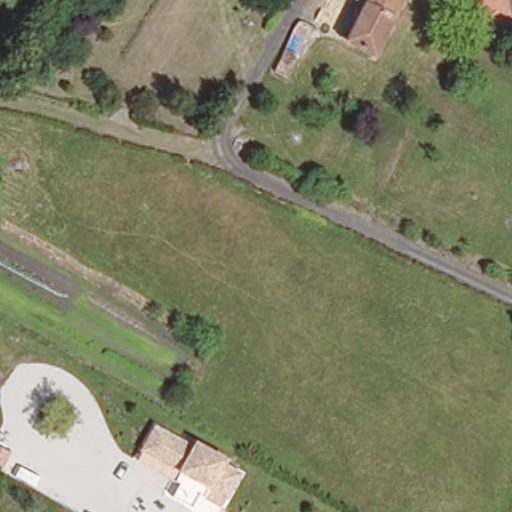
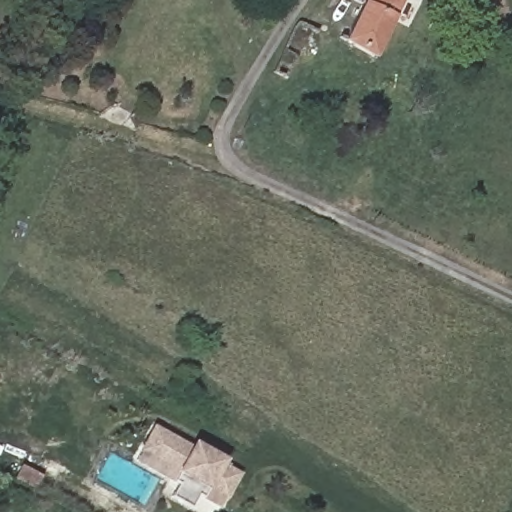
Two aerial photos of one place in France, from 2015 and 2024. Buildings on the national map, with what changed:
unchanged [(373,66),(339,44),(361,2),(355,0),(403,0),(373,66)]
unchanged [(190,447),(192,443),(224,460),(222,463),(239,473),(225,498),(141,452),(154,428),(190,447)]

